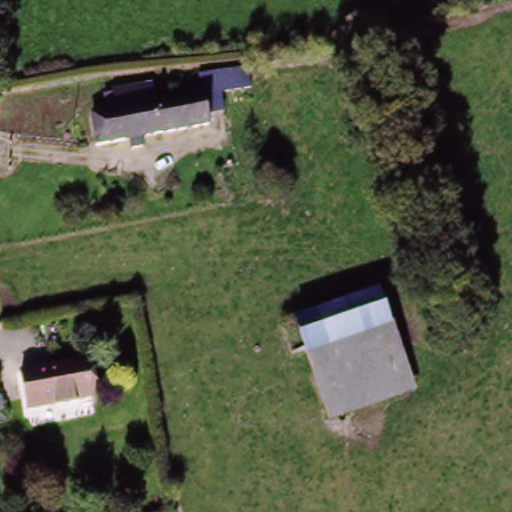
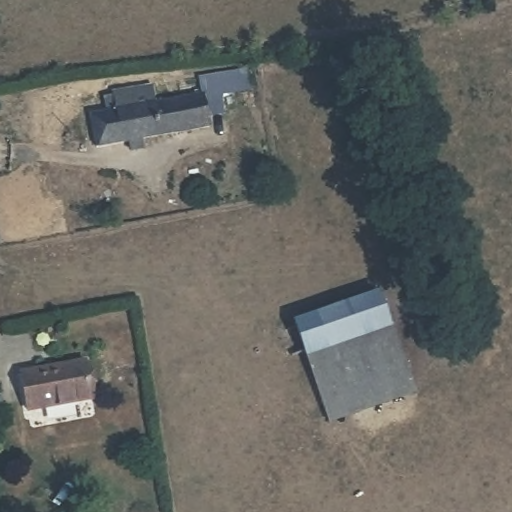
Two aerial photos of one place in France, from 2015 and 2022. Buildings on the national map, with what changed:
unchanged [(116,99),(168,89),(170,104),(220,104),(225,126),(99,155),(90,120),(119,114),(116,99)]
unchanged [(296,356),(289,320),(385,297),(393,332),(305,354),(296,356)]
unchanged [(397,331),(416,400),(321,425),(305,354),(393,332),(397,331)]
unchanged [(21,407),(17,370),(85,362),(90,398),(21,407)]

